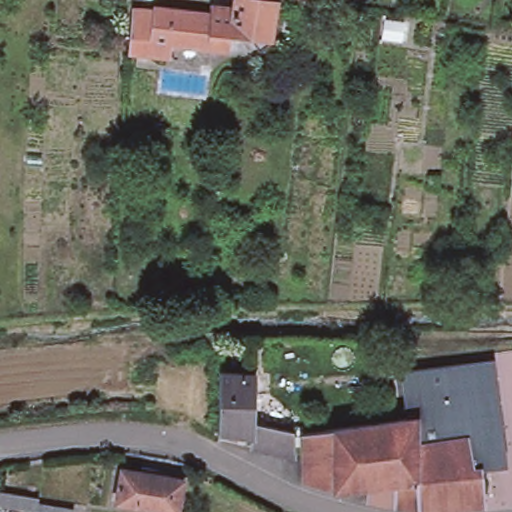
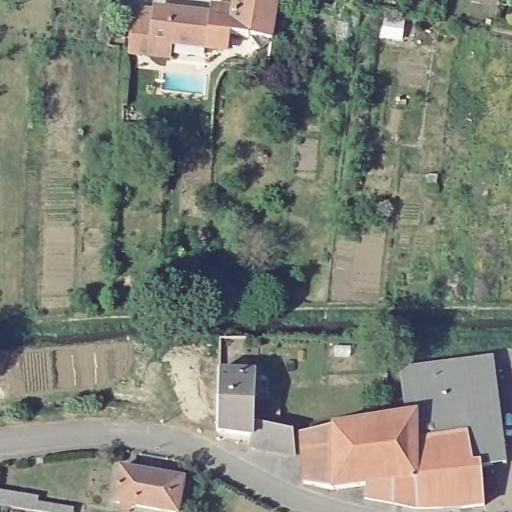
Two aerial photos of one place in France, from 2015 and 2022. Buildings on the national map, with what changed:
unchanged [(152,5),(229,14),(231,0),(275,0),(270,38),(227,32),(225,47),(166,41),(165,54),(147,51),(127,48),(131,7),(151,8),(152,5)]
unchanged [(401,349),(402,366),(393,367),(392,350),(401,349)]
unchanged [(494,359),(508,461),(494,463),(480,361),(494,359)]
unchanged [(406,387),(404,371),(480,361),(494,463),(482,465),(482,462),(471,463),(466,432),(417,439),(417,413),(409,414),(407,406),(406,387)]
unchanged [(297,454),(250,444),(251,432),(219,428),(221,369),(237,370),(238,365),(243,365),(243,370),(256,370),(255,425),(295,433),(297,454)]
unchanged [(396,479),(336,487),(305,481),(302,430),(409,414),(417,413),(417,439),(466,432),(471,463),(482,462),(482,465),(486,503),(461,505),(416,505),(396,505),(396,479)]
unchanged [(178,512),(161,512),(117,504),(122,470),(183,481),(178,512)]
unchanged [(64,512),(38,512),(40,504),(65,509),(64,512)]

